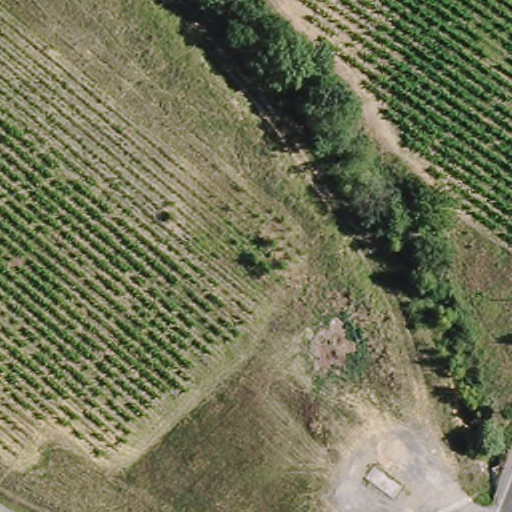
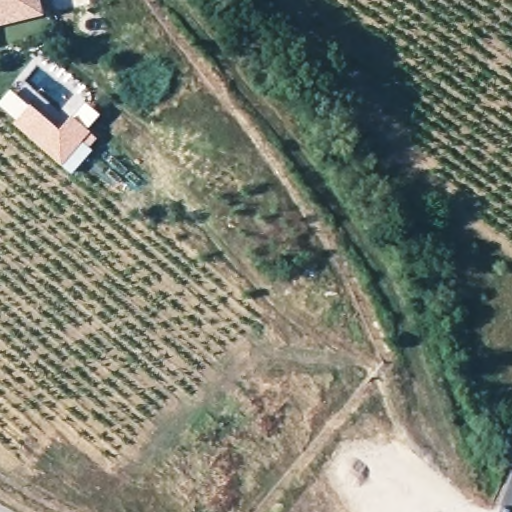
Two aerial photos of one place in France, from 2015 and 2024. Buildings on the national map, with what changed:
new [(0,25),(0,0),(39,0),(42,14),(0,25)]
new [(70,114),(89,130),(60,165),(12,124),(30,104),(58,128),(70,114)]

